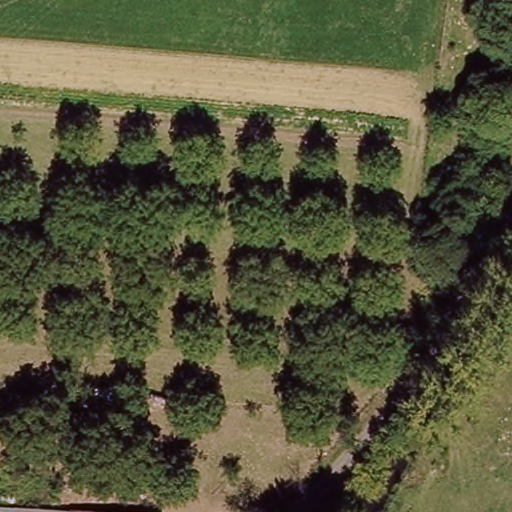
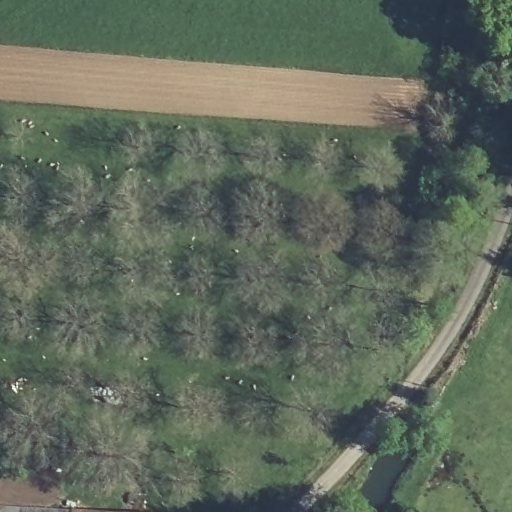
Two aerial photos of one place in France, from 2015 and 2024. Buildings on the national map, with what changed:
unchanged [(62,512),(72,512),(0,512),(0,508),(62,512)]

